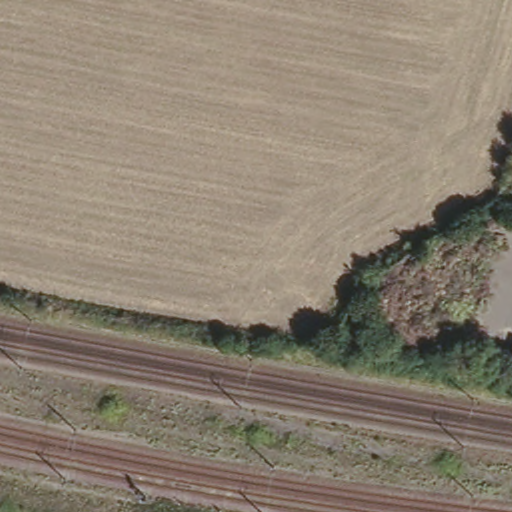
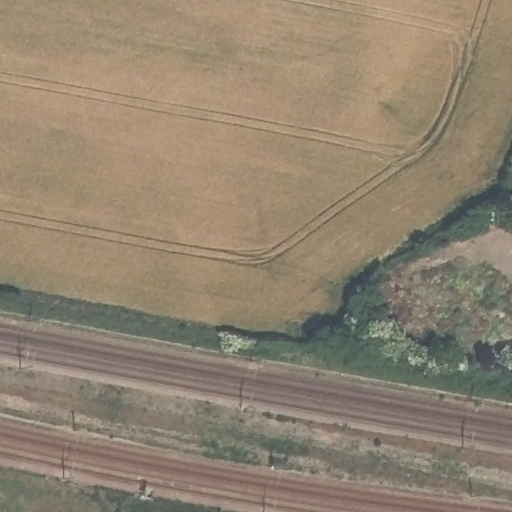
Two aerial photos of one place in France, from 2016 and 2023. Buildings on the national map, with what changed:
unchanged [(476,334),(512,342),(512,356),(473,349),(476,334)]

